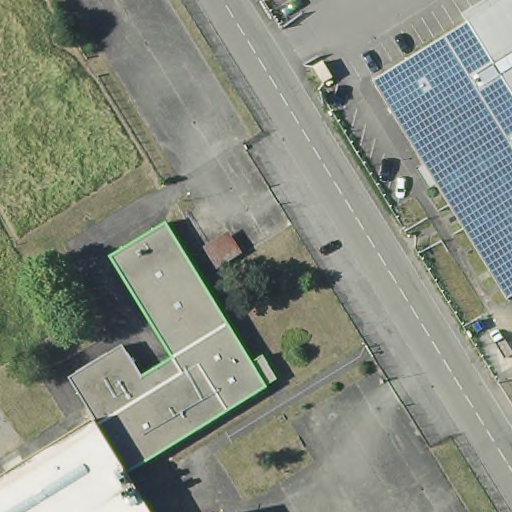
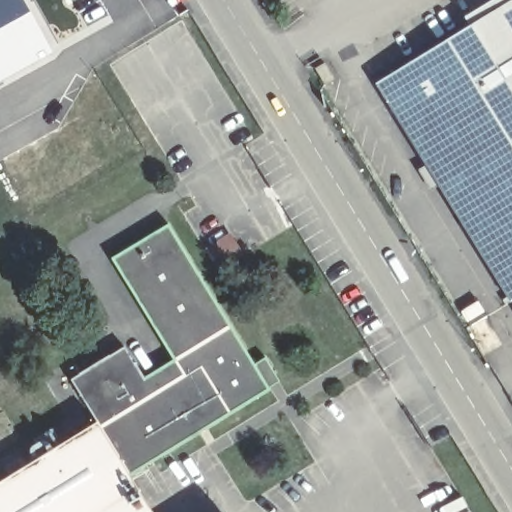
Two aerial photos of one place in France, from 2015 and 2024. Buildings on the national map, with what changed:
new [(54,50),(0,80),(0,0),(25,0),(54,50)]
unchanged [(370,86),(510,0),(512,0),(512,301),(508,303),(370,86)]
unchanged [(319,74),(332,66),(341,81),(328,90),(319,74)]
unchanged [(173,359),(114,260),(168,226),(228,325),(173,359)]
unchanged [(96,427),(182,375),(173,359),(228,325),(269,392),(127,479),(96,427)]
unchanged [(78,399),(66,378),(122,344),(142,377),(173,359),(182,375),(96,427),(91,420),(78,399)]
unchanged [(0,512),(0,478),(91,420),(96,427),(127,479),(130,485),(86,512),(0,512)]
unchanged [(86,512),(130,485),(147,512),(86,512)]

